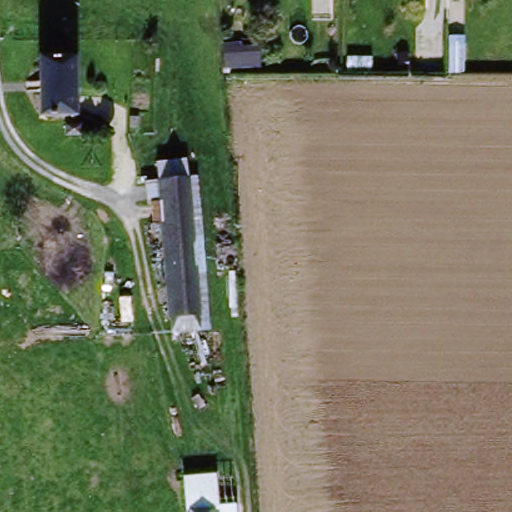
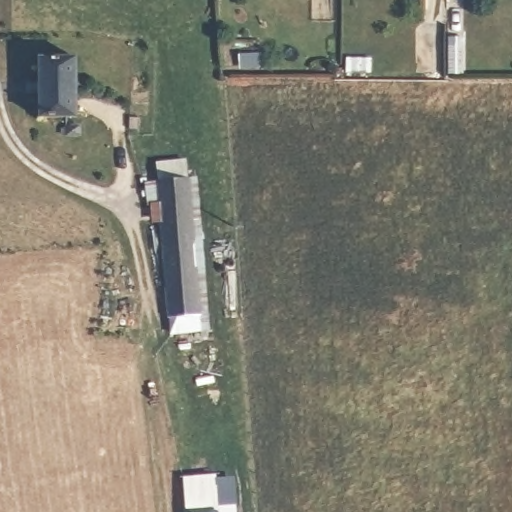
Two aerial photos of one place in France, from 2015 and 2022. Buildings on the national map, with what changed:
unchanged [(79,117),(43,116),(44,64),(82,63),(79,117)]
unchanged [(79,119),(80,129),(67,131),(65,119),(79,119)]
unchanged [(195,272),(200,333),(174,333),(161,187),(187,184),(193,247),(195,272)]
unchanged [(220,281),(195,272),(193,247),(215,234),(240,244),(242,267),(220,281)]

